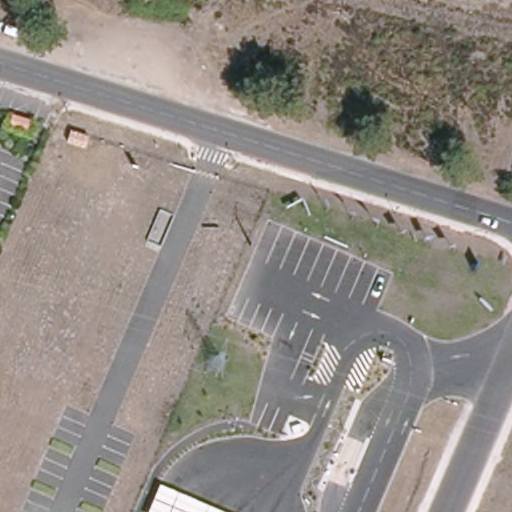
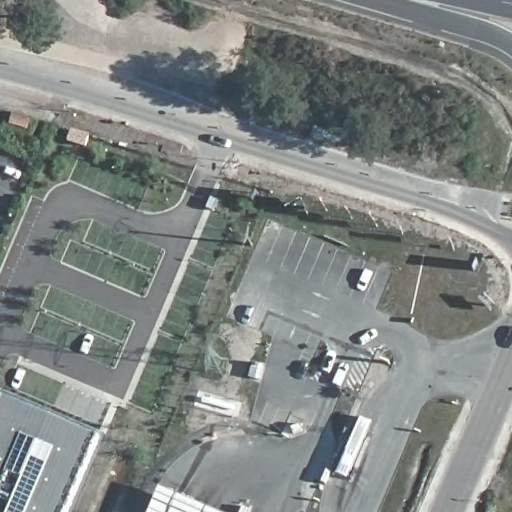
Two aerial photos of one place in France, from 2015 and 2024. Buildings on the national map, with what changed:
new [(70,512),(0,512),(0,412),(8,393),(104,432),(70,512)]
new [(161,485),(224,512),(149,512),(161,485)]

